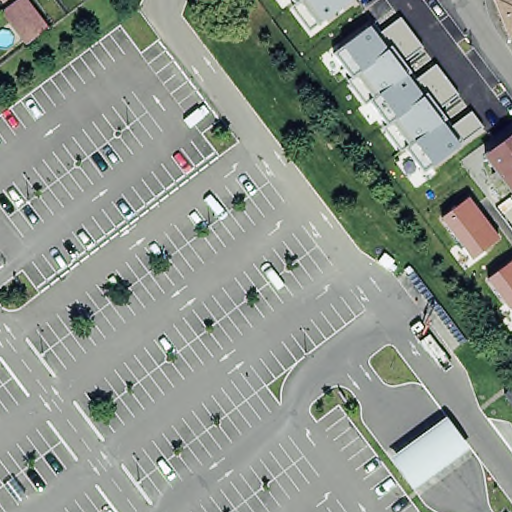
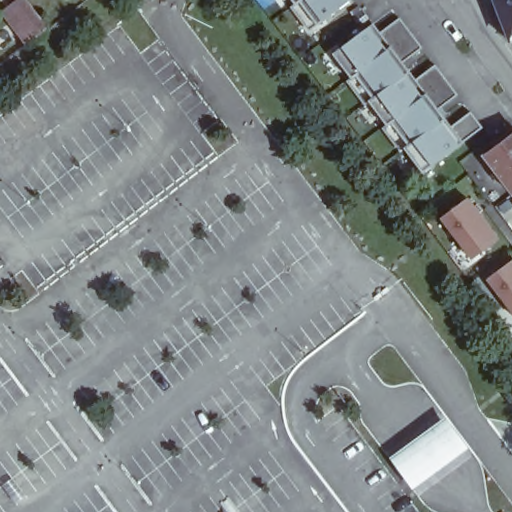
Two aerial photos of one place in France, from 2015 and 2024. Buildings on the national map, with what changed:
unchanged [(38,17),(21,30),(18,32),(5,16),(9,13),(9,12),(25,0),(38,17)]
unchanged [(325,20),(317,26),(310,30),(292,6),(295,4),(292,0),(350,0),(325,20)]
unchanged [(493,0),(512,0),(512,36),(509,40),(493,0)]
unchanged [(370,27),(377,37),(400,17),(422,48),(404,62),(412,74),(408,77),(413,84),(435,64),(459,95),(439,110),(447,120),(443,123),(449,130),(472,112),(483,128),(459,146),(433,165),(424,173),(404,149),(401,151),(384,128),(387,125),(369,101),(365,104),(347,80),(352,77),(334,52),(342,46),(370,27)]
unchanged [(512,143),(512,191),(489,160),(512,143)]
unchanged [(500,239),(473,260),(442,217),(469,197),(500,239)]
unchanged [(512,260),(512,312),(487,278),(512,260)]
unchanged [(504,394),(512,387),(512,405),(504,394)]
unchanged [(393,453),(450,413),(473,445),(416,480),(393,453)]

